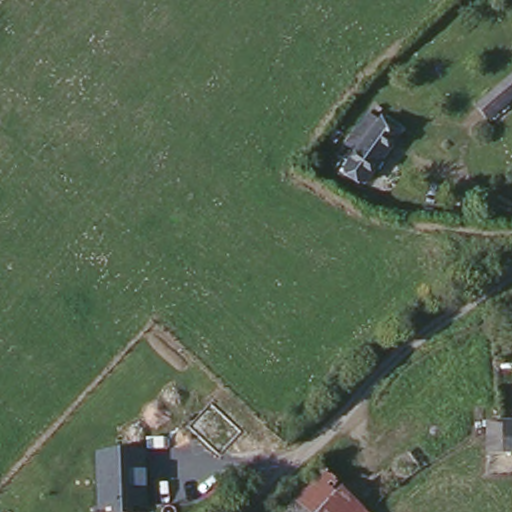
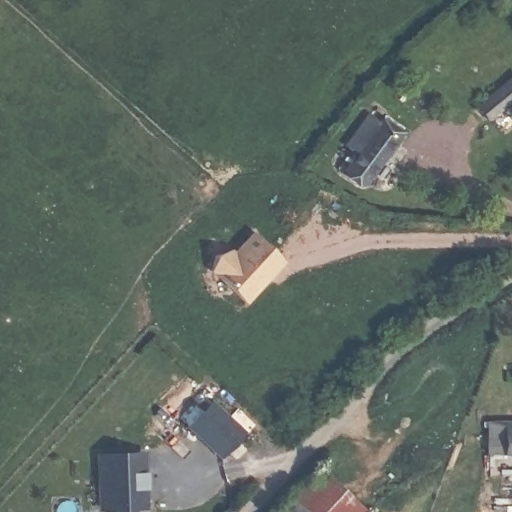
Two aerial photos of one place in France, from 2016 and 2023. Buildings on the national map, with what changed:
unchanged [(481,105),(512,79),(512,103),(492,120),(481,105)]
unchanged [(370,184),(348,169),(359,152),(350,146),(374,112),(385,120),(387,117),(407,130),(370,184)]
new [(218,276),(213,259),(248,250),(256,237),(284,265),(246,302),(218,276)]
new [(213,404),(242,432),(219,455),(188,428),(213,404)]
unchanged [(512,452),(492,452),(493,420),(512,420),(512,452)]
unchanged [(136,511),(136,512),(114,512),(99,510),(98,455),(147,454),(149,510),(136,511)]
unchanged [(370,512),(277,512),(323,468),(370,512)]

